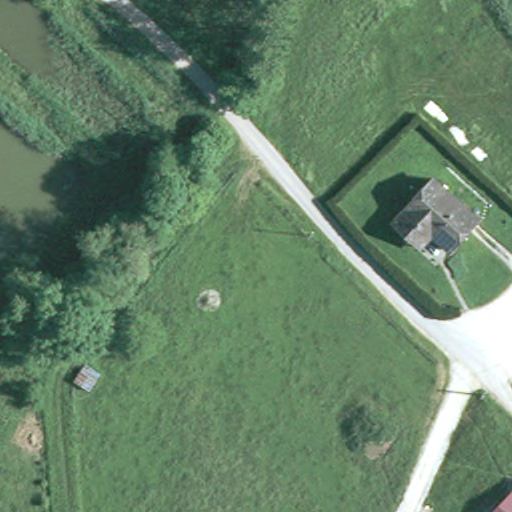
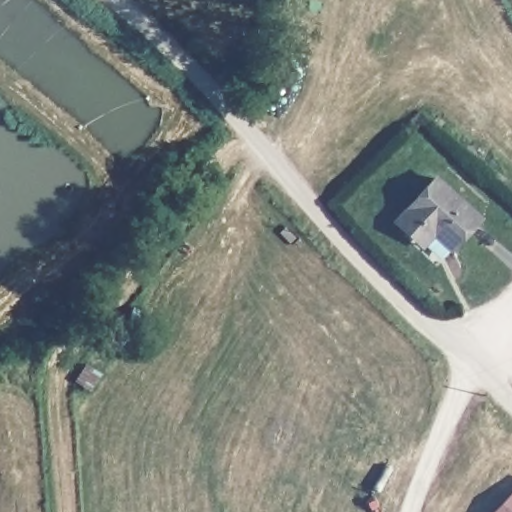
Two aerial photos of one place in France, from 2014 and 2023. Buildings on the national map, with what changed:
unchanged [(410,231),(393,215),(431,171),(478,215),(450,244),(430,226),(418,239),(410,231)]
unchanged [(512,512),(493,512),(512,493),(512,512)]

